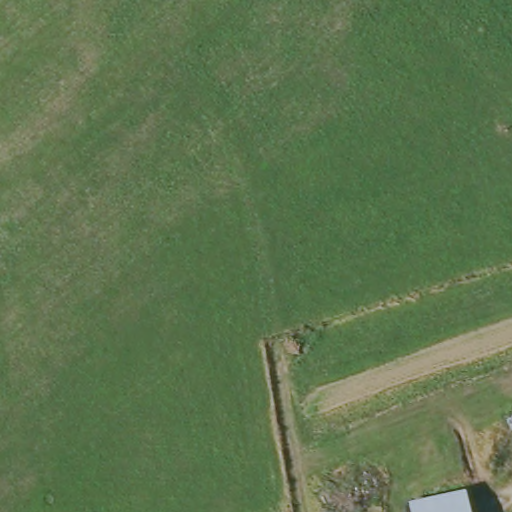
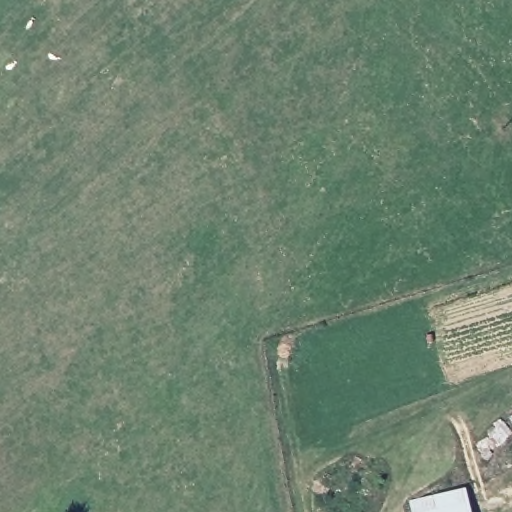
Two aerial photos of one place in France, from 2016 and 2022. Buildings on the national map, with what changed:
unchanged [(441,512),(464,510),(464,512),(441,512)]

